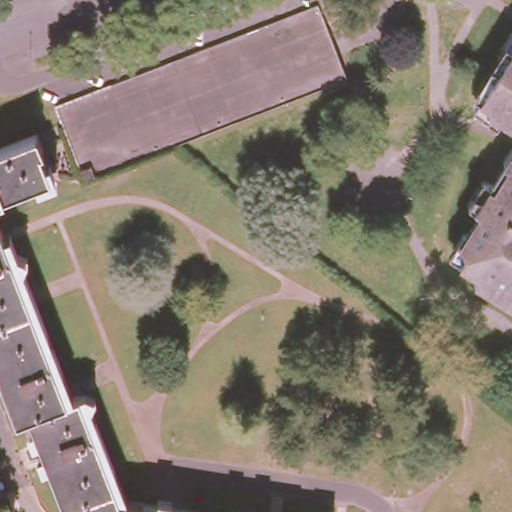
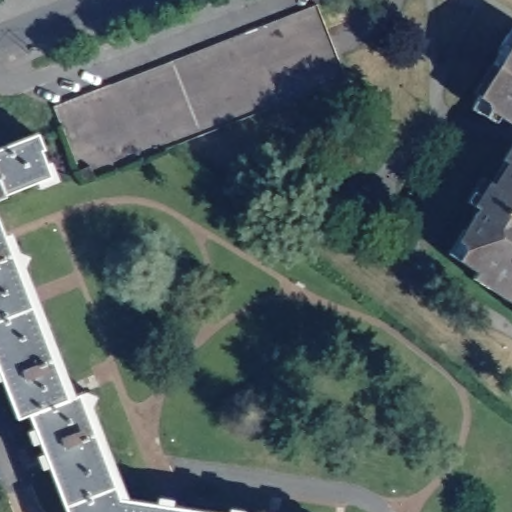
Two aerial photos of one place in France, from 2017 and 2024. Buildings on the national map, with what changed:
unchanged [(321,0),(349,75),(179,140),(85,175),(56,99),(318,0),(321,0)]
unchanged [(490,112),(469,99),(475,89),(492,63),(486,59),(501,35),(512,42),(512,118),(494,106),(490,112)]
unchanged [(43,127),(50,144),(45,145),(55,171),(10,188),(11,191),(0,196),(0,144),(43,127)]
unchanged [(478,201),(469,196),(464,193),(479,170),(489,177),(505,152),(501,149),(512,132),(512,298),(467,268),(471,263),(452,251),(442,244),(455,223),(462,227),(478,201)]
unchanged [(32,409),(20,413),(0,361),(0,209),(71,394),(82,390),(123,494),(236,512),(71,512),(32,409)]
unchanged [(512,302),(512,305),(511,304),(512,302)]

